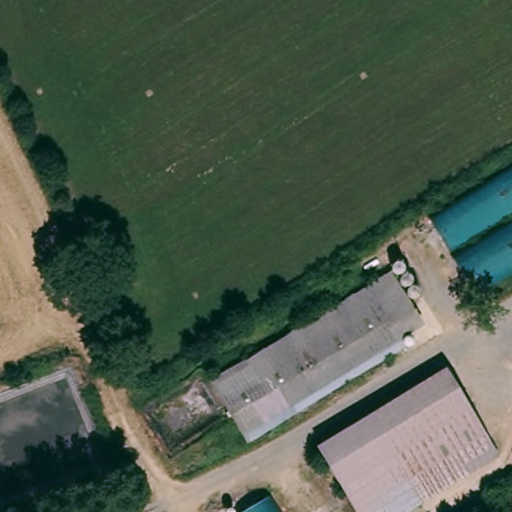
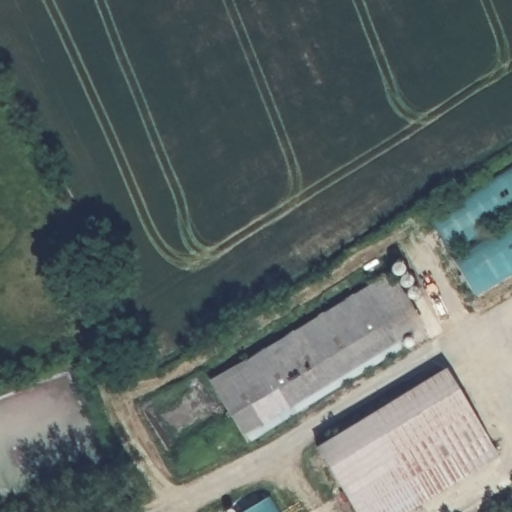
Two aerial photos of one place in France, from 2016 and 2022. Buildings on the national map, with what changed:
unchanged [(512,215),(452,251),(430,214),(512,165),(512,215)]
unchanged [(512,272),(478,292),(454,255),(512,221),(512,272)]
unchanged [(385,270),(403,300),(380,315),(395,337),(244,433),(235,417),(213,380),(385,270)]
unchanged [(363,512),(317,446),(351,428),(371,418),(371,417),(373,417),(375,415),(380,412),(393,404),(394,403),(407,396),(415,391),(436,377),(437,377),(438,376),(441,375),(445,371),(501,453),(433,497),(429,500),(411,512),(363,512)]
unchanged [(222,512),(220,508),(258,480),(281,512),(222,512)]

